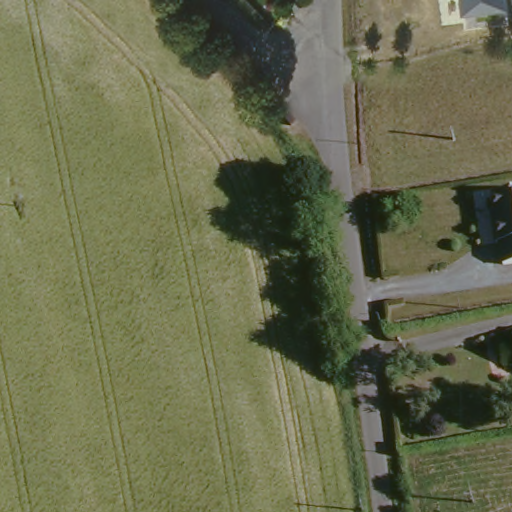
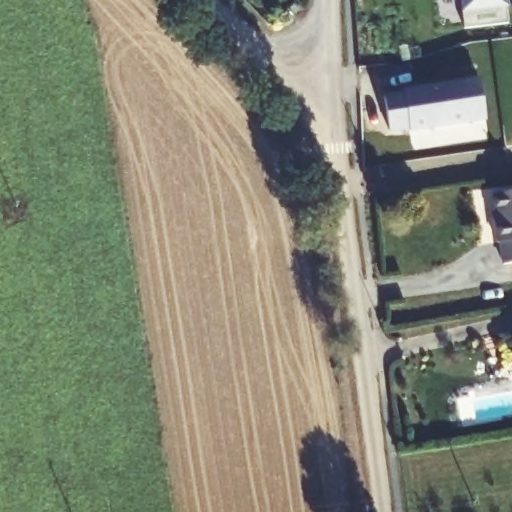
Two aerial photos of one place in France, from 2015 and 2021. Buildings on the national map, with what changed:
unchanged [(465,26),(464,15),(461,15),(459,0),(508,0),(510,22),(465,26)]
new [(402,96),(402,94),(478,83),(485,123),(409,135),(409,132),(389,135),(383,100),(402,96)]
unchanged [(512,191),(512,262),(500,263),(498,240),(493,240),(491,220),(496,218),(493,194),(512,191)]

